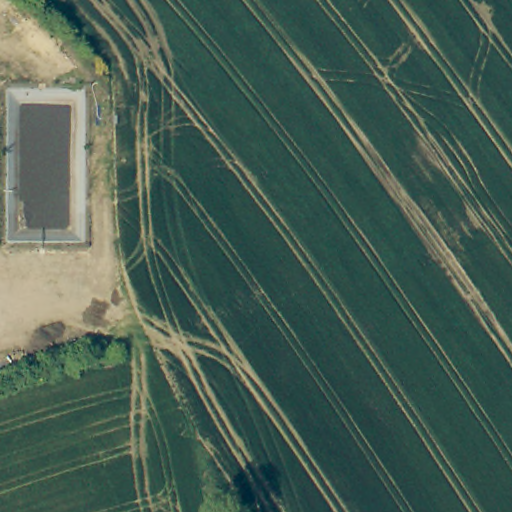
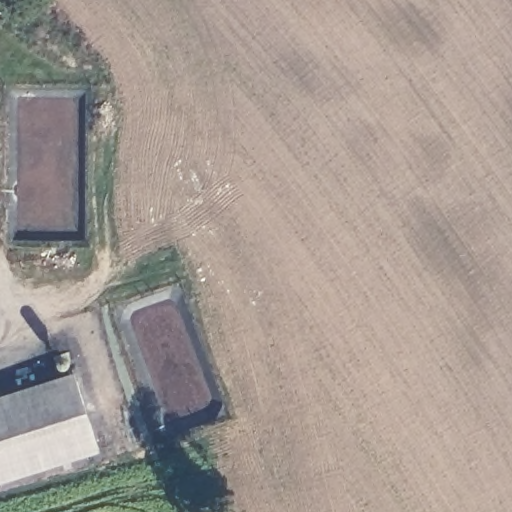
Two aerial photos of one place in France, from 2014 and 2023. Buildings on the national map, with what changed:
new [(98,452),(0,484),(0,395),(72,372),(98,452)]

